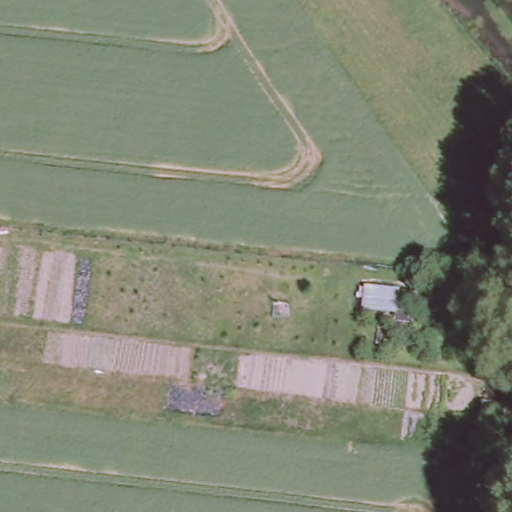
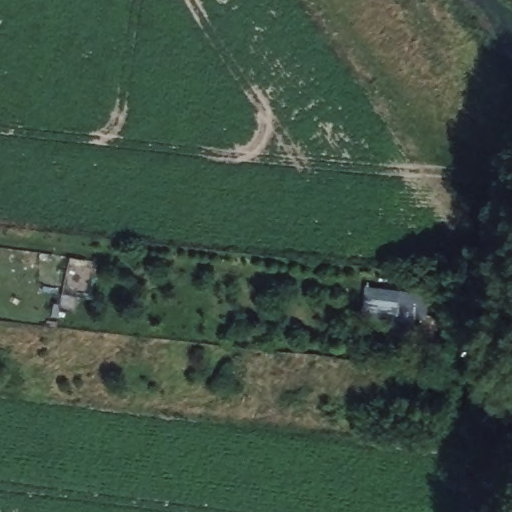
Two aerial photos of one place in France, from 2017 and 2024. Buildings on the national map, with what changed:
unchanged [(397,287),(395,314),(357,308),(362,283),(397,287)]

